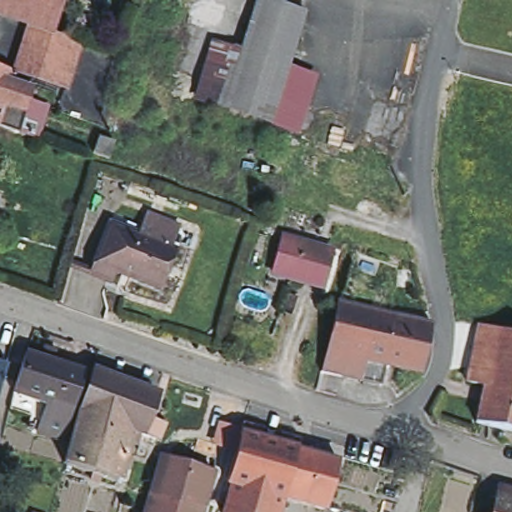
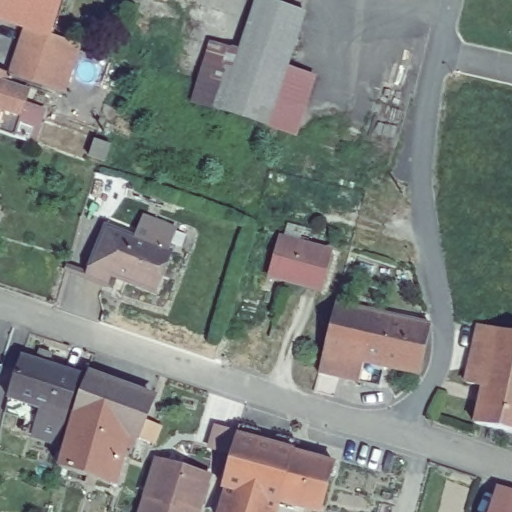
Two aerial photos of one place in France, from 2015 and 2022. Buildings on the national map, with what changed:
unchanged [(23,60),(34,27),(7,19),(2,16),(7,1),(7,0),(57,0),(52,14),(46,31),(65,38),(55,71),(23,60)]
unchanged [(285,69),(238,53),(256,0),(267,0),(304,12),(285,69)]
unchanged [(67,93),(61,91),(36,82),(18,75),(23,60),(55,71),(65,38),(77,42),(83,45),(67,93)]
unchanged [(310,77),(290,132),(197,103),(215,45),(238,53),(285,69),(310,77)]
unchanged [(17,75),(0,129),(0,70),(17,75)]
unchanged [(37,144),(19,137),(0,131),(0,129),(17,75),(18,75),(36,82),(30,103),(48,109),(37,144)]
unchanged [(110,145),(105,161),(90,156),(95,140),(110,145)]
unchanged [(148,212),(180,225),(171,246),(156,286),(115,270),(130,230),(140,234),(148,212)]
unchanged [(112,279),(92,271),(111,222),(130,230),(115,270),(112,279)]
unchanged [(335,250),(326,283),(275,269),(285,235),(335,250)]
unchanged [(359,377),(318,369),(324,347),(325,347),(336,298),(376,307),(430,320),(418,370),(385,362),(380,381),(359,377)]
unchanged [(470,376),(482,319),(500,323),(487,380),(470,376)]
unchanged [(512,386),(487,380),(500,323),(512,326),(512,386)]
unchanged [(37,435),(46,408),(13,397),(27,355),(69,370),(87,375),(72,417),(62,444),(37,435)]
unchanged [(6,365),(0,384),(0,363),(6,365)]
unchanged [(128,445),(117,485),(64,467),(80,415),(92,374),(111,381),(158,398),(142,437),(138,448),(128,445)]
unchanged [(512,425),(478,418),(487,380),(512,386),(512,425)]
unchanged [(297,428),(292,446),(237,430),(242,412),(297,428)]
unchanged [(292,446),(278,496),(277,495),(229,483),(222,481),(237,430),(292,446)]
unchanged [(290,508),(292,500),(278,496),(292,446),(335,457),(320,507),(303,502),(301,511),(290,508)]
unchanged [(144,505),(148,506),(152,492),(155,493),(165,456),(211,470),(199,512),(142,512),(144,505)]
unchanged [(277,495),(273,512),(220,512),(229,483),(277,495)]
unchanged [(500,493),(512,497),(512,512),(494,512),(500,493)]
unchanged [(479,511),(482,512),(479,512),(479,511)]

